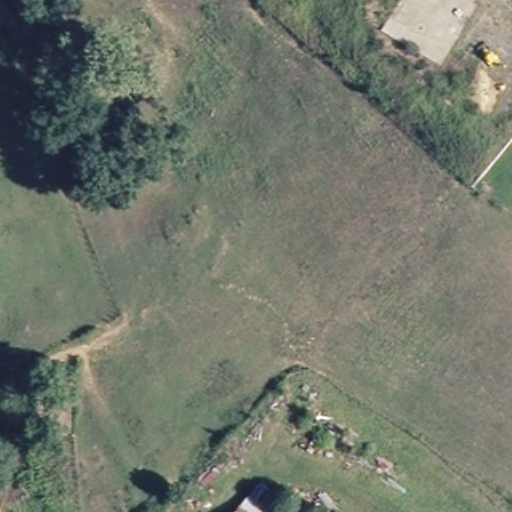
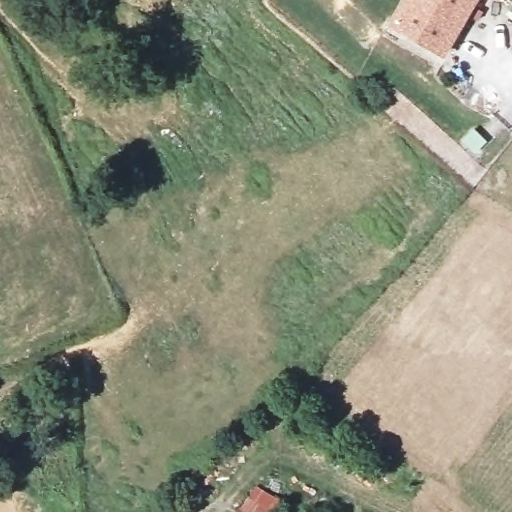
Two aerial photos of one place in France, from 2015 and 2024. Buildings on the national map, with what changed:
new [(387,25),(402,0),(479,0),(445,59),(387,25)]
unchanged [(249,481),(283,498),(274,512),(230,512),(249,481)]

